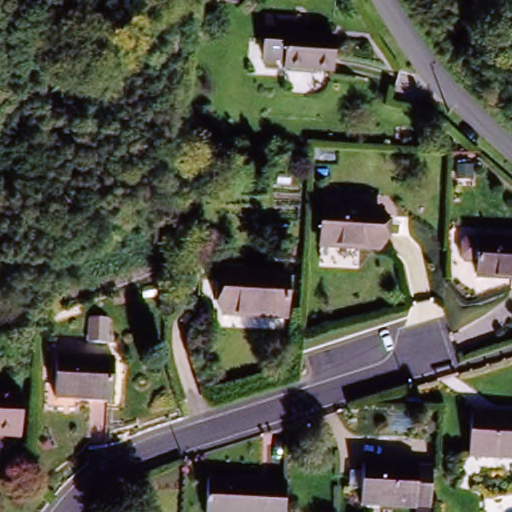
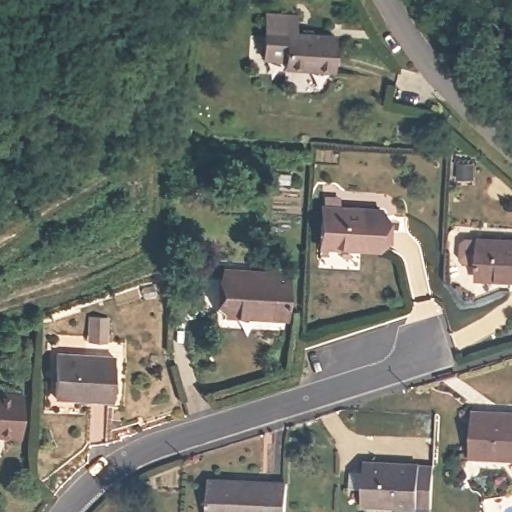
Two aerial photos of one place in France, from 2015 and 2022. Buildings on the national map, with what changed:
unchanged [(301,23),(302,37),(348,38),(348,73),(301,73),(302,64),(281,65),(280,23),(301,23)]
unchanged [(327,215),(385,216),(385,253),(327,253),(327,215)]
unchanged [(479,281),(480,244),(512,245),(512,283),(479,281)]
unchanged [(226,320),(227,277),(288,278),(287,322),(226,320)]
unchanged [(109,401),(56,398),(58,358),(111,361),(109,401)]
unchanged [(0,403),(17,403),(16,437),(0,437),(0,403)]
unchanged [(512,419),(512,458),(468,454),(472,415),(512,419)]
unchanged [(434,512),(361,512),(363,476),(437,482),(434,512)]
unchanged [(283,512),(206,512),(208,485),(285,490),(283,512)]

